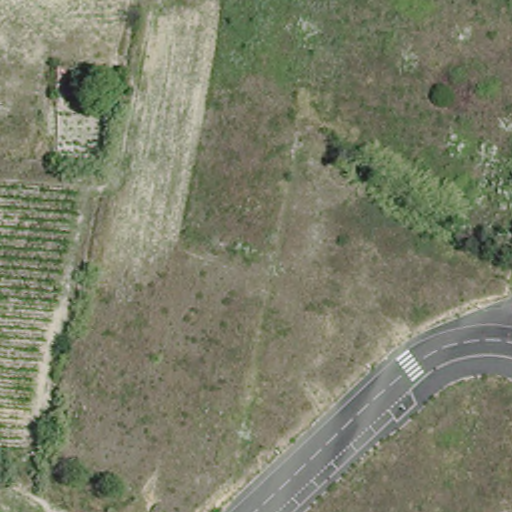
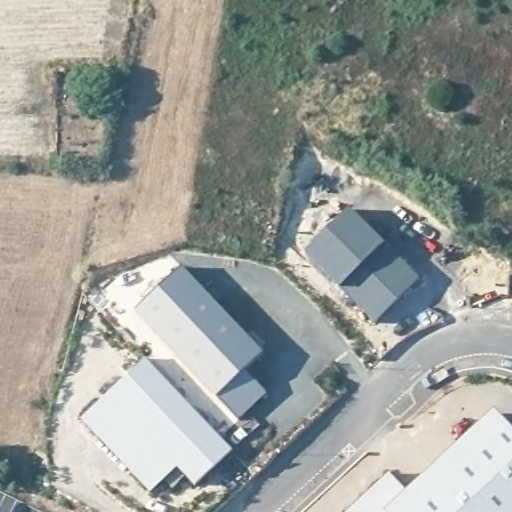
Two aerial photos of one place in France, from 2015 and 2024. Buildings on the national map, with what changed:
new [(349,205),(387,243),(339,288),(301,250),(349,205)]
new [(387,243),(421,279),(374,323),(339,288),(387,243)]
new [(185,265),(267,353),(249,369),(271,392),(241,419),(138,309),(185,265)]
new [(148,358),(234,450),(197,485),(180,467),(110,393),(148,358)]
new [(110,393),(180,467),(153,492),(83,419),(110,393)]
new [(512,431),(512,512),(348,512),(389,473),(409,494),(495,413),(512,431)]

